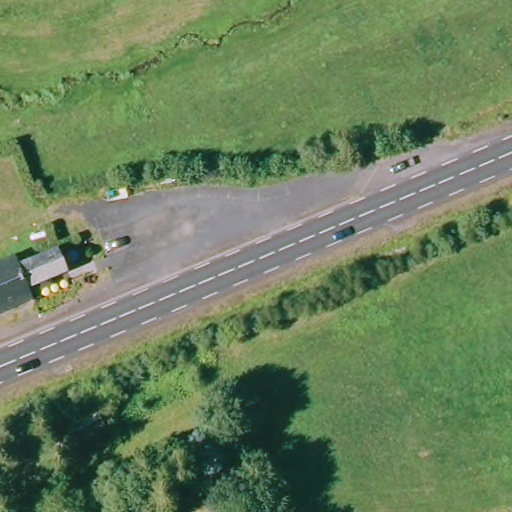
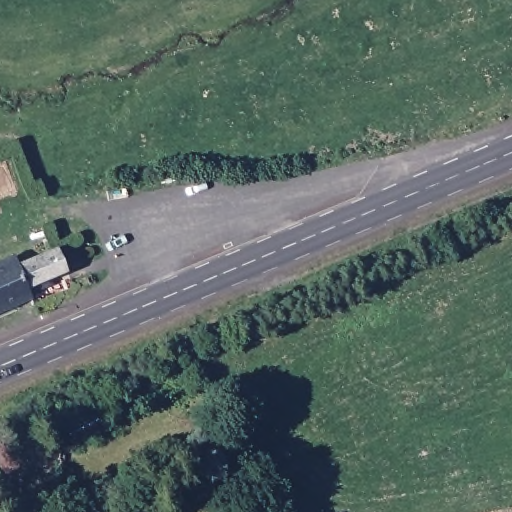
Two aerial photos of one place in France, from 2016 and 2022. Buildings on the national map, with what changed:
unchanged [(72,272),(35,289),(38,301),(0,318),(0,264),(17,256),(22,267),(62,249),(72,272)]
unchanged [(113,434),(120,448),(90,463),(81,449),(113,434)]

